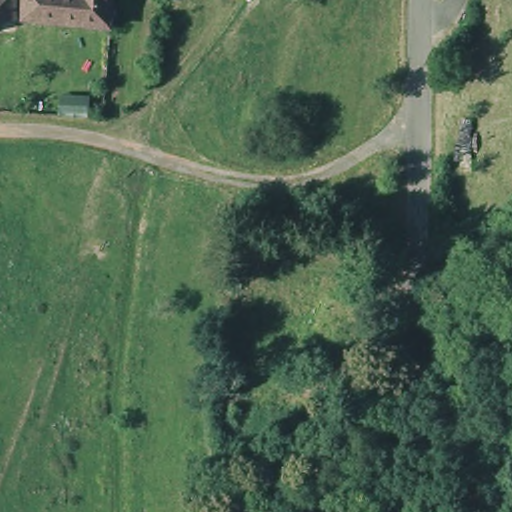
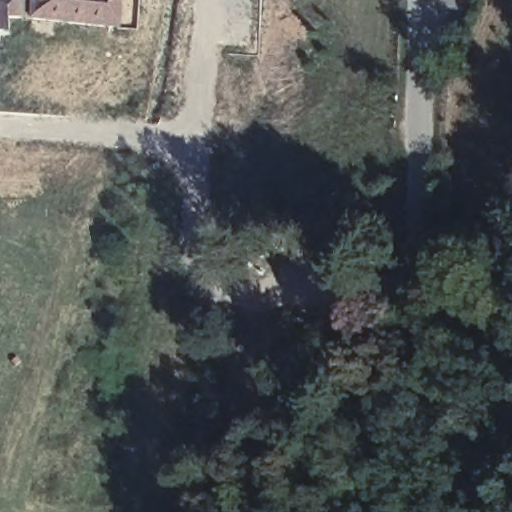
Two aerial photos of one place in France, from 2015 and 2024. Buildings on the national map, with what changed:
unchanged [(18,14),(21,14),(21,28),(2,29),(0,27),(0,0),(18,0),(18,14)]
unchanged [(113,21),(28,14),(28,0),(114,0),(113,21)]
unchanged [(91,117),(61,116),(61,92),(90,93),(91,117)]
unchanged [(241,260),(247,224),(315,226),(311,265),(241,260)]

